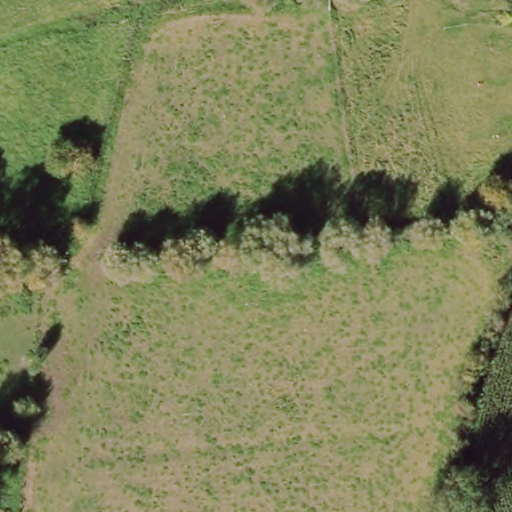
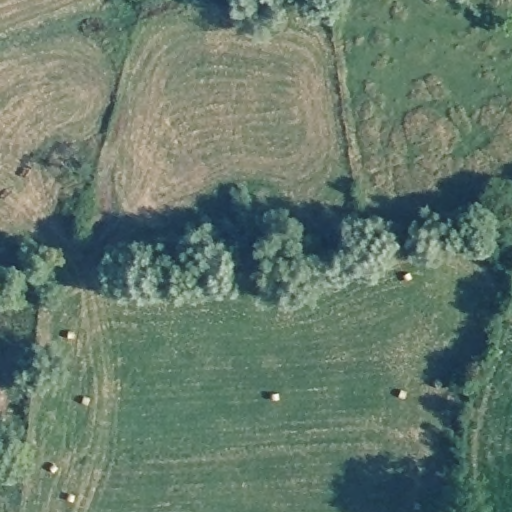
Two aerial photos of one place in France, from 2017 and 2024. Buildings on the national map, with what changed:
[]

